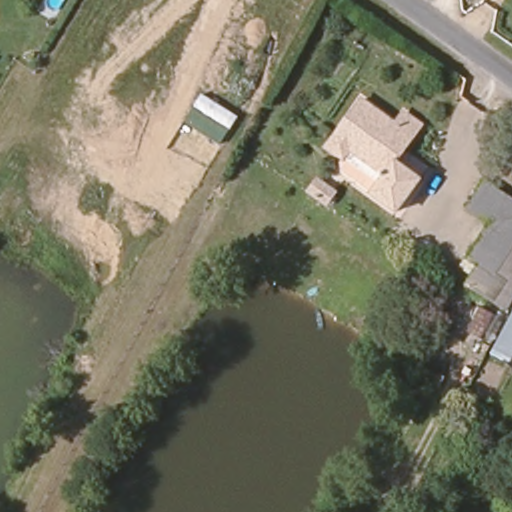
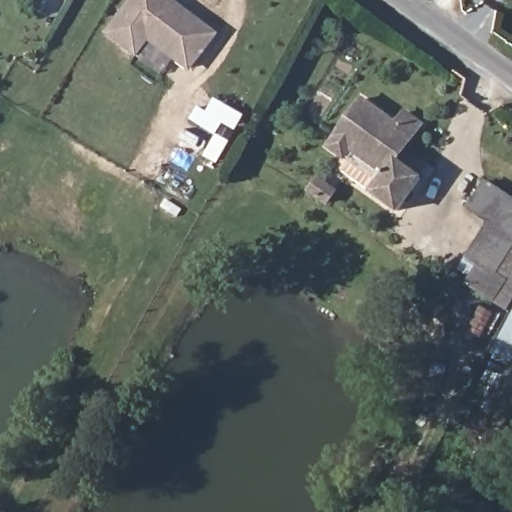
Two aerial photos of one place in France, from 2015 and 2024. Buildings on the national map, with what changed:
new [(189,73),(149,42),(138,57),(104,33),(129,0),(175,0),(220,34),(189,73)]
unchanged [(418,170),(422,173),(399,207),(371,189),(378,177),(343,154),(324,142),(359,92),(395,118),(402,107),(419,117),(403,144),(416,154),(424,159),(418,170)]
unchanged [(491,270),(468,255),(489,222),(469,208),(488,181),(512,198),(512,237),(491,270)]
unchanged [(491,270),(512,237),(512,284),(491,270)]
unchanged [(512,333),(512,353),(504,349),(512,333)]

